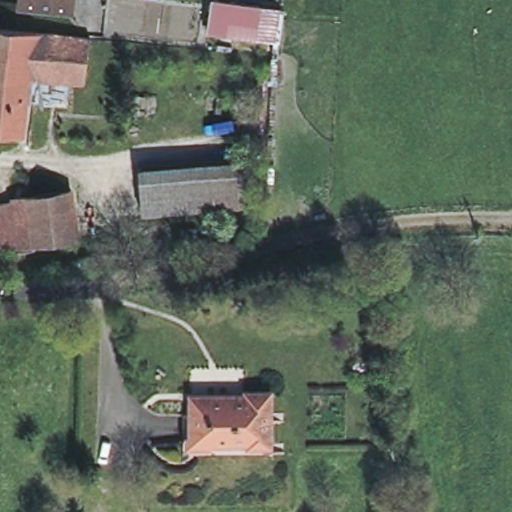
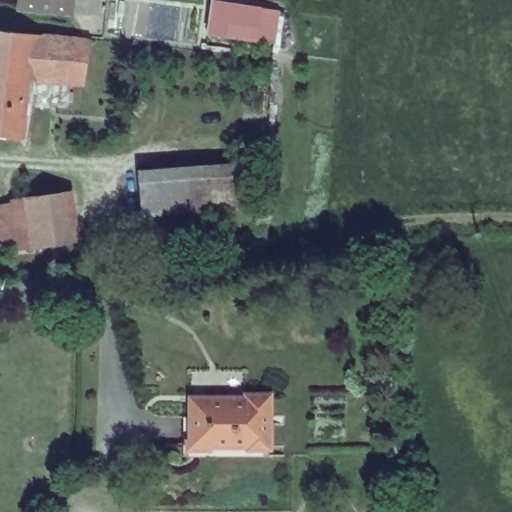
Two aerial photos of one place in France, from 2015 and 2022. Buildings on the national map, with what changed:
unchanged [(71,11),(19,6),(20,0),(73,0),(71,11)]
unchanged [(273,41),(254,38),(208,31),(213,0),(222,0),(260,6),(259,7),(278,10),(273,41)]
unchanged [(23,136),(0,134),(0,29),(33,33),(91,39),(84,83),(70,82),(68,103),(26,100),(23,136)]
unchanged [(141,211),(138,169),(242,165),(244,205),(141,211)]
unchanged [(0,211),(0,202),(76,191),(83,239),(6,251),(0,211)]
unchanged [(0,248),(3,256),(0,257),(0,248)]
unchanged [(269,446),(249,446),(249,443),(193,444),(192,400),(250,399),(250,396),(269,397),(269,446)]

